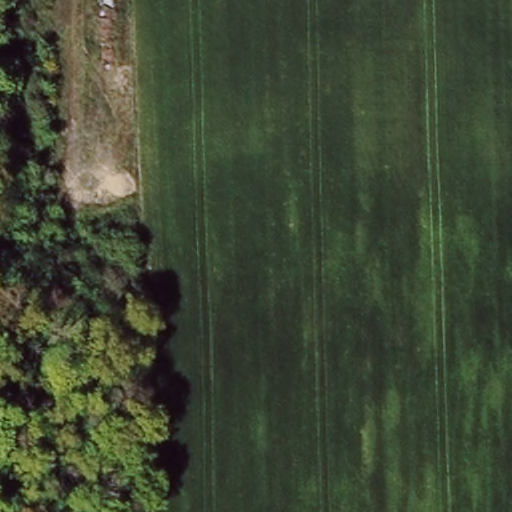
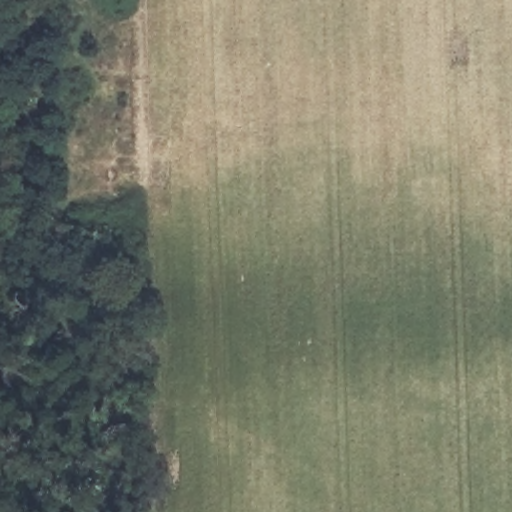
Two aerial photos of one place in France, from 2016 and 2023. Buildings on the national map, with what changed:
[]

